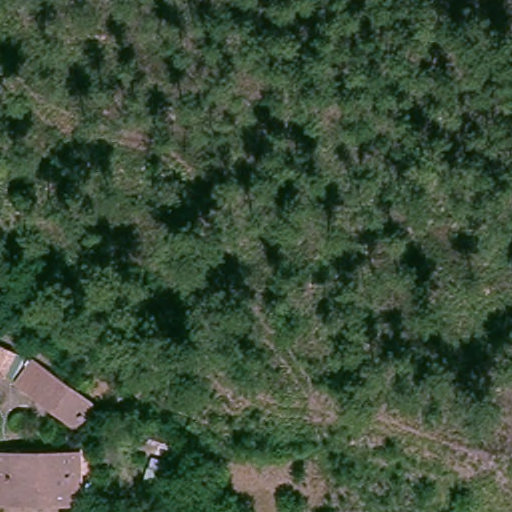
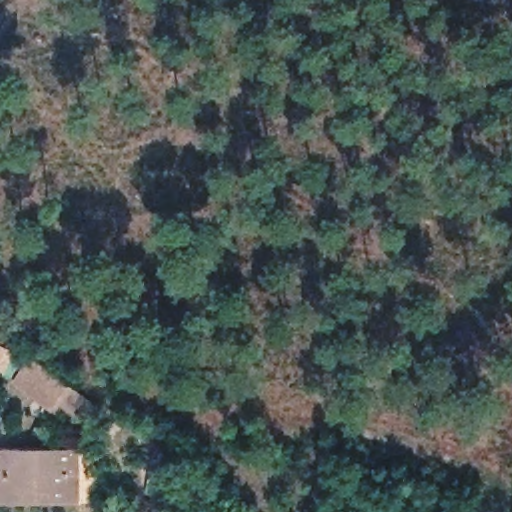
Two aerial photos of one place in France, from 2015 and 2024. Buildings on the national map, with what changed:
unchanged [(64,427),(19,387),(40,367),(49,360),(91,401),(64,427)]
unchanged [(0,451),(80,456),(77,506),(0,502),(0,451)]

